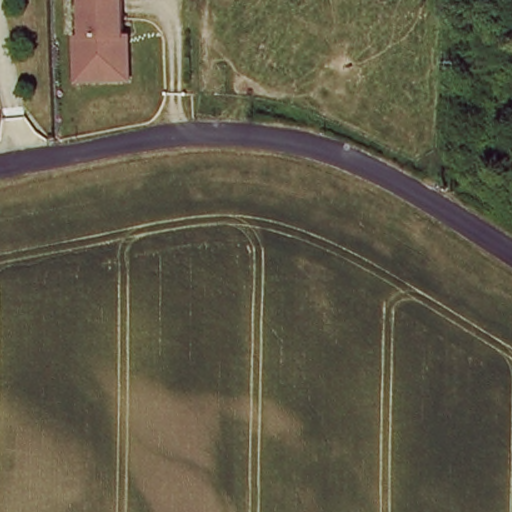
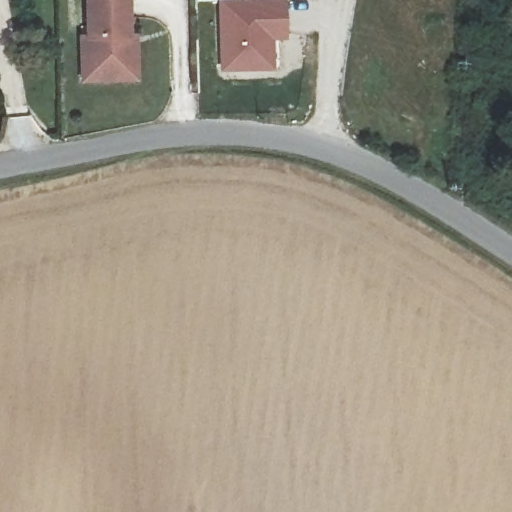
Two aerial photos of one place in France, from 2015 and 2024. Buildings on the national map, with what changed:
unchanged [(87,86),(88,0),(138,0),(138,38),(147,38),(149,86),(87,86)]
new [(274,40),(273,69),(219,72),(218,0),(286,0),(287,40),(274,40)]

